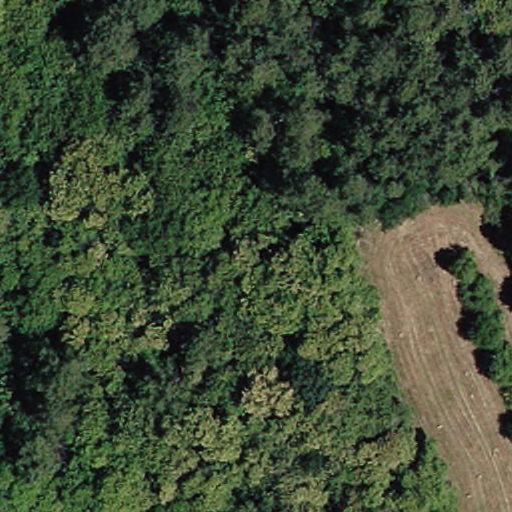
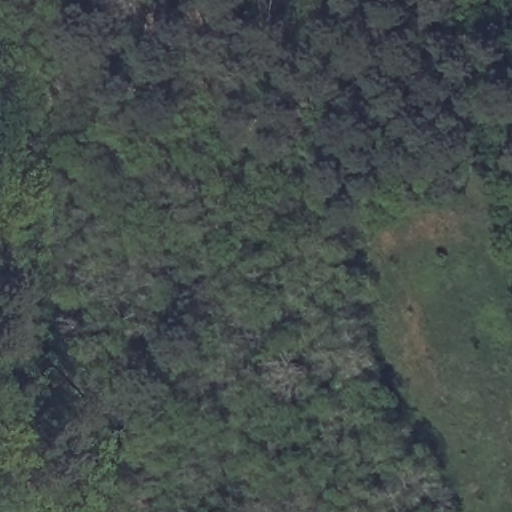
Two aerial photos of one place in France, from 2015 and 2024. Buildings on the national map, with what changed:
[]

